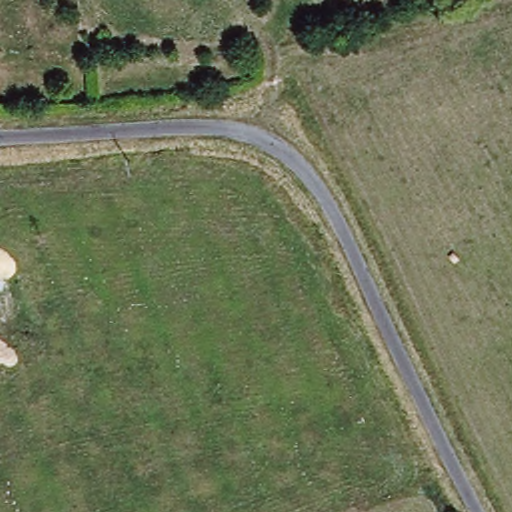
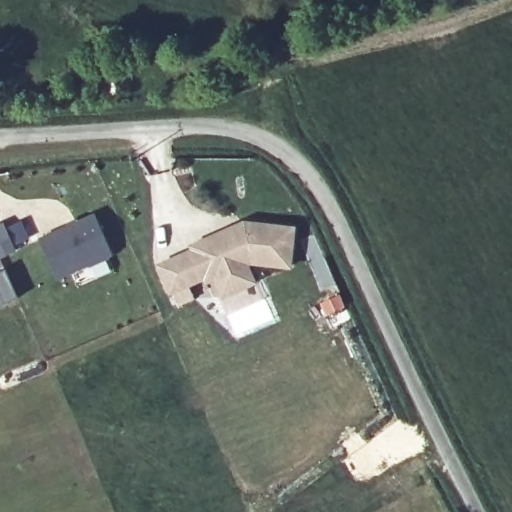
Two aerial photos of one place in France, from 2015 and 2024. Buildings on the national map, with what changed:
new [(89,213),(107,252),(52,278),(34,240),(89,213)]
new [(244,220),(296,225),(291,270),(250,266),(257,283),(222,299),(213,282),(206,285),(203,280),(169,296),(154,264),(244,220)]
new [(0,223),(12,248),(0,254),(0,223)]

